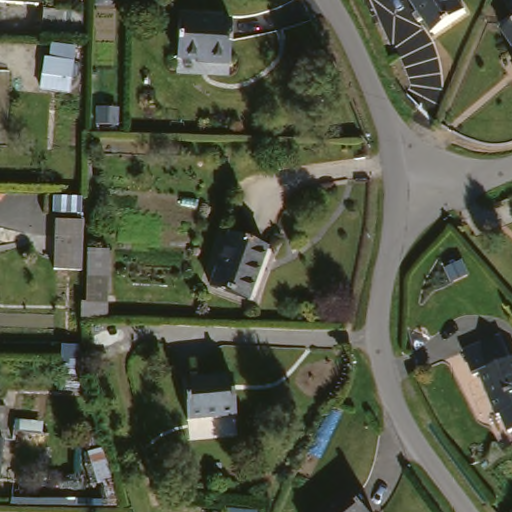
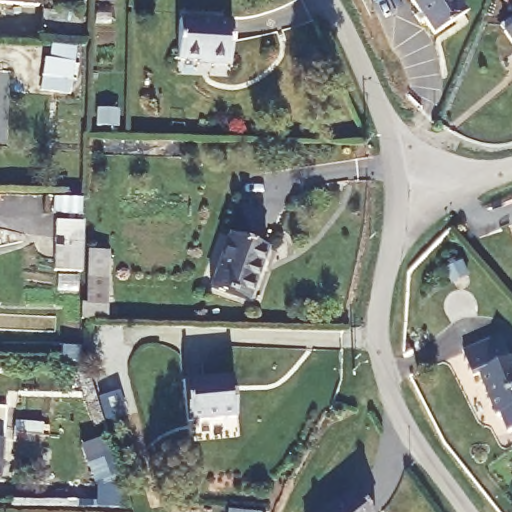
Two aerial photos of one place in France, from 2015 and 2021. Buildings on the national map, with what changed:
unchanged [(0,7),(0,0),(38,0),(38,8),(0,7)]
unchanged [(93,46),(91,0),(118,0),(120,45),(93,46)]
unchanged [(430,35),(406,0),(453,0),(462,14),(430,35)]
unchanged [(500,0),(512,0),(512,20),(499,2),(500,0)]
unchanged [(230,26),(228,69),(212,67),(213,62),(170,59),(174,23),(230,26)]
unchanged [(512,54),(496,32),(512,23),(512,54)]
unchanged [(75,55),(69,99),(36,95),(44,51),(75,55)]
unchanged [(512,61),(512,73),(505,66),(512,61)]
unchanged [(84,227),(84,248),(55,247),(56,227),(84,227)]
unchanged [(266,252),(247,302),(208,289),(227,237),(266,252)]
unchanged [(105,327),(81,327),(82,254),(106,252),(105,327)]
unchanged [(509,360),(512,358),(512,428),(509,429),(502,412),(499,413),(482,373),(479,372),(477,372),(468,350),(499,337),(509,360)]
unchanged [(75,365),(80,388),(61,391),(63,367),(75,365)]
unchanged [(231,378),(236,422),(188,427),(183,385),(231,378)]
unchanged [(2,413),(0,433),(0,413),(2,413)]
unchanged [(351,492),(367,512),(328,512),(351,492)]

